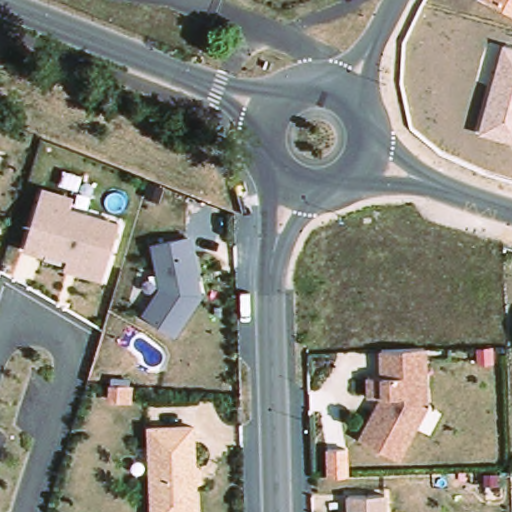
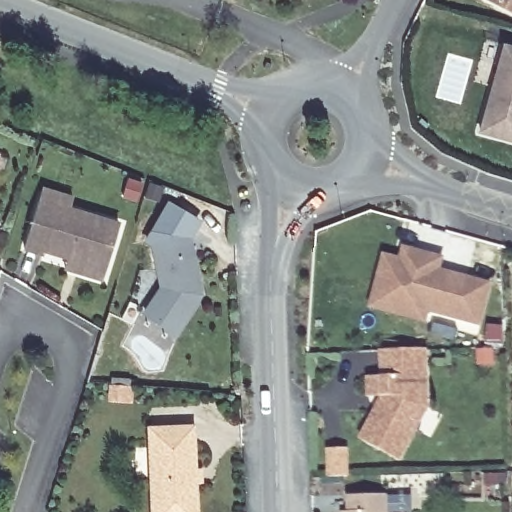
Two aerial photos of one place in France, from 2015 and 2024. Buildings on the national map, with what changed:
unchanged [(512,0),(512,14),(484,0),(512,0)]
unchanged [(478,131),(502,42),(512,45),(512,141),(478,131)]
unchanged [(1,153),(0,156),(0,153),(1,153)]
unchanged [(76,194),(72,207),(122,222),(104,282),(65,270),(68,262),(25,249),(43,184),(76,194)]
unchanged [(192,233),(205,294),(177,338),(142,314),(160,286),(152,243),(192,233)]
new [(400,257),(402,245),(445,257),(442,269),(493,282),(481,326),(429,313),(426,324),(367,309),(382,253),(400,257)]
unchanged [(428,346),(430,405),(400,460),(360,438),(381,394),(368,396),(367,376),(380,374),(379,349),(428,346)]
unchanged [(196,423),(198,469),(204,469),(205,485),(199,485),(200,512),(150,512),(148,426),(196,423)]
unchanged [(388,494),(388,512),(341,512),(341,511),(347,511),(348,494),(388,494)]

